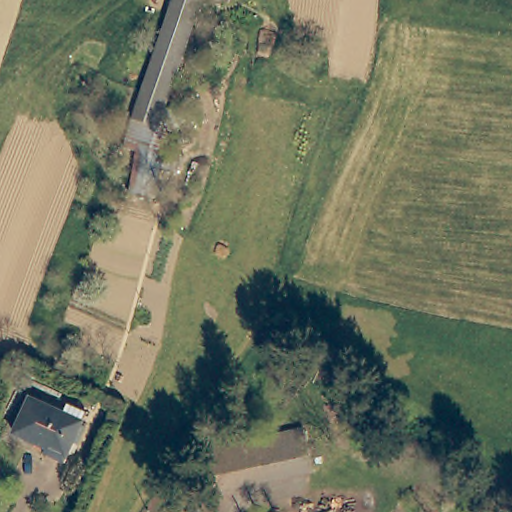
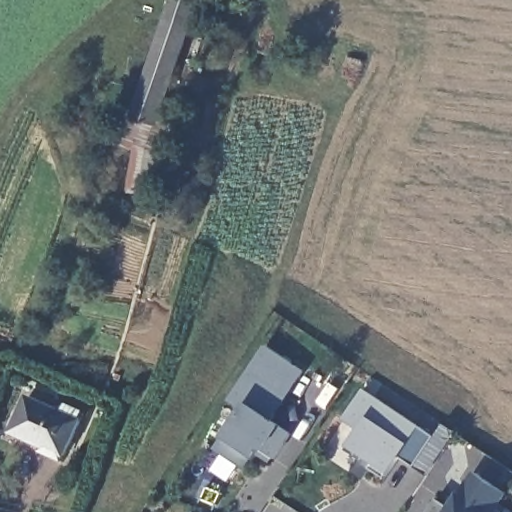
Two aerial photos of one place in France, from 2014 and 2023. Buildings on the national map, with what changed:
unchanged [(199,0),(204,1),(161,126),(136,117),(174,0),(199,0)]
unchanged [(139,147),(165,154),(155,197),(130,191),(139,147)]
new [(217,451),(225,439),(244,409),(230,402),(266,347),(306,374),(276,425),(283,429),(293,436),(277,461),(275,460),(272,464),(259,455),(256,460),(248,471),(217,451)]
new [(417,468),(403,458),(391,475),(386,480),(364,466),(368,462),(349,449),(360,432),(344,422),(366,390),(436,439),(417,468)]
unchanged [(31,397),(82,423),(64,459),(12,432),(31,397)]
demolished [(214,490),(205,448),(304,428),(311,473),(214,490)]
new [(439,500),(451,508),(462,495),(465,497),(476,475),(511,496),(501,510),(504,512),(431,512),(439,500)]

